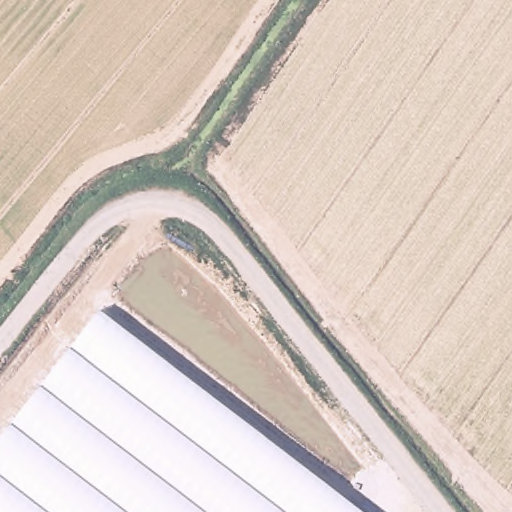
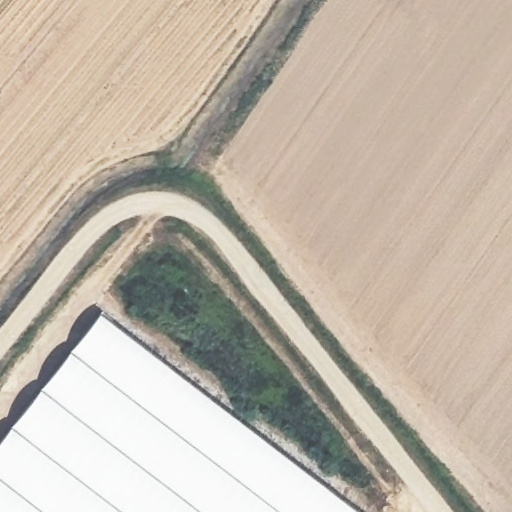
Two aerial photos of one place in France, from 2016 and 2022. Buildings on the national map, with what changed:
unchanged [(0,440),(100,312),(361,512),(0,512),(0,440)]

